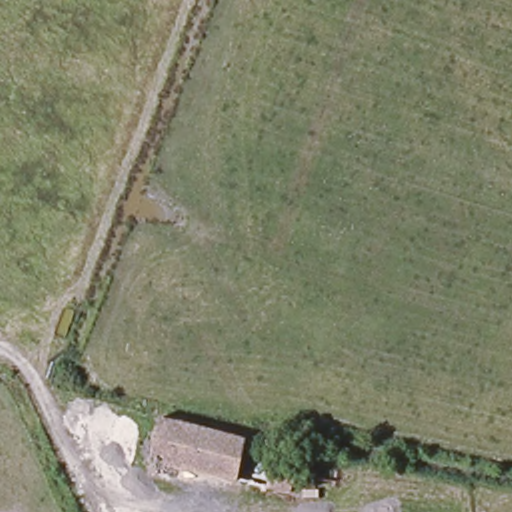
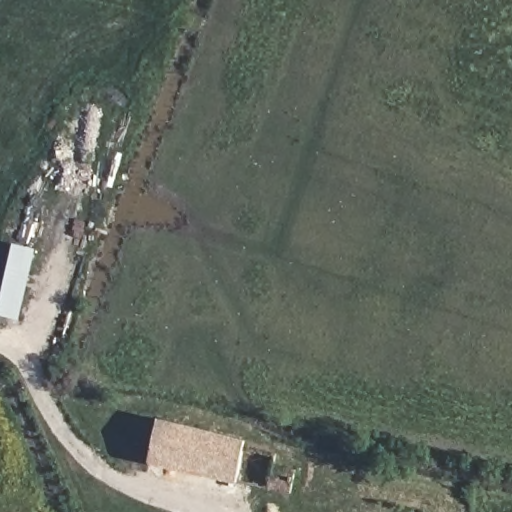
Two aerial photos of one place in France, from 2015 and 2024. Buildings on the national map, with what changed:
new [(35,249),(20,316),(0,311),(0,300),(13,243),(35,249)]
unchanged [(248,437),(247,445),(304,457),(297,493),(154,463),(164,419),(248,437)]

